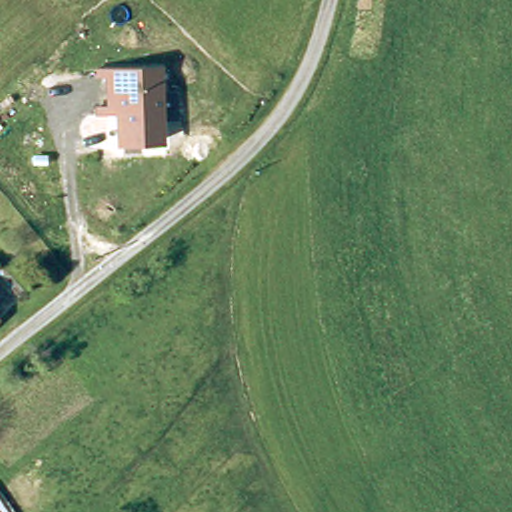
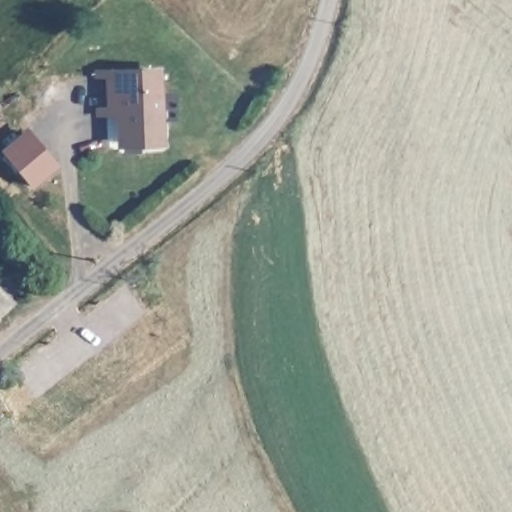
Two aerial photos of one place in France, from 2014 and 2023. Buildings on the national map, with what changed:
unchanged [(115,117),(127,116),(126,87),(113,87),(113,80),(125,79),(125,83),(175,81),(178,150),(140,151),(139,136),(128,138),(127,124),(115,124),(115,117)]
new [(33,188),(0,149),(0,148),(27,125),(61,164),(33,188)]

